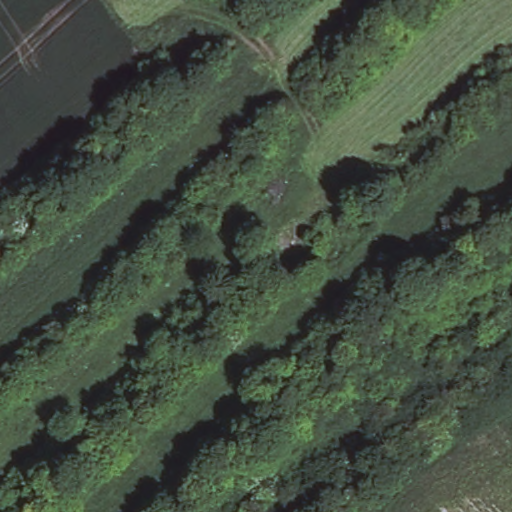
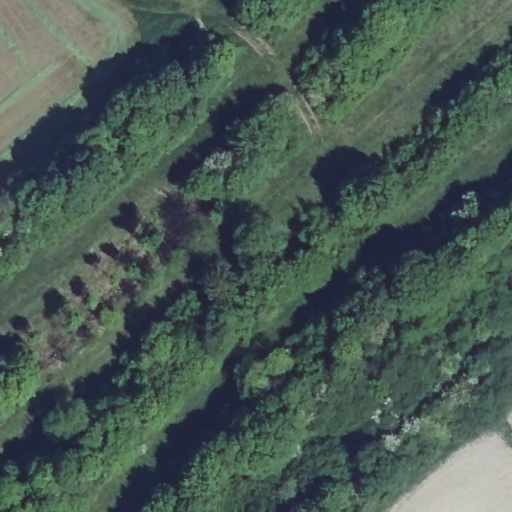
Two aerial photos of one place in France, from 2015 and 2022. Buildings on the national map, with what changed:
unchanged [(272,229),(294,212),(310,233),(287,248),(272,229)]

